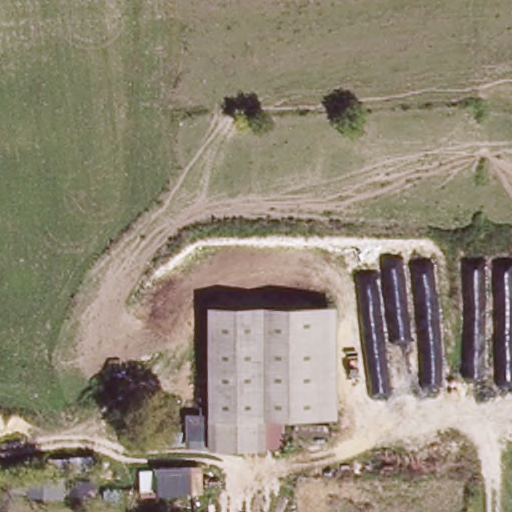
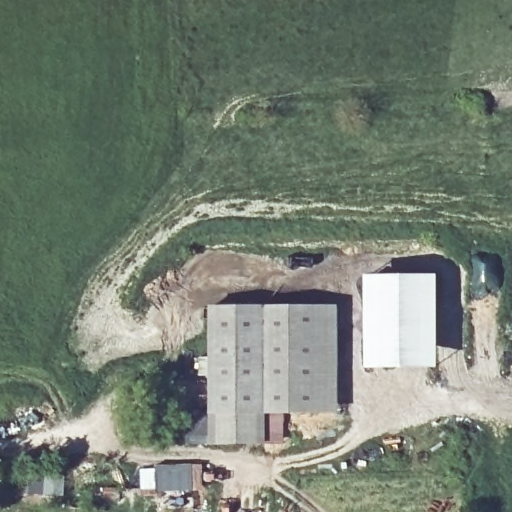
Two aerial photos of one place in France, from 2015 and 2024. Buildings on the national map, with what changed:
new [(363,276),(436,274),(437,367),(364,368),(363,276)]
unchanged [(337,413),(267,412),(267,443),(207,443),(207,302),(337,305),(337,413)]
unchanged [(140,470),(203,467),(204,491),(141,493),(140,470)]

